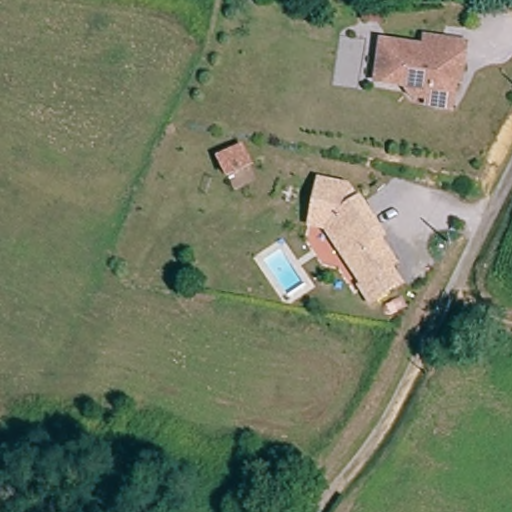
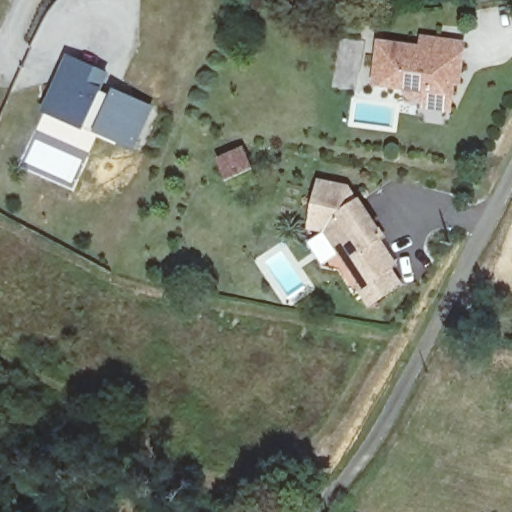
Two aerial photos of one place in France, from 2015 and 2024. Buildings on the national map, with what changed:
unchanged [(434,112),(434,100),(430,102),(420,102),(416,100),(411,94),(411,91),(381,86),(387,45),(431,51),(431,43),(447,46),(472,50),(466,87),(460,87),(459,87),(457,99),(455,114),(434,112)]
new [(42,111),(67,55),(111,73),(102,91),(112,96),(115,89),(154,106),(136,150),(42,111)]
unchanged [(333,232),(317,231),(319,224),(326,186),(356,191),(384,232),(380,235),(402,270),(379,284),(369,290),(348,259),(333,232)]

